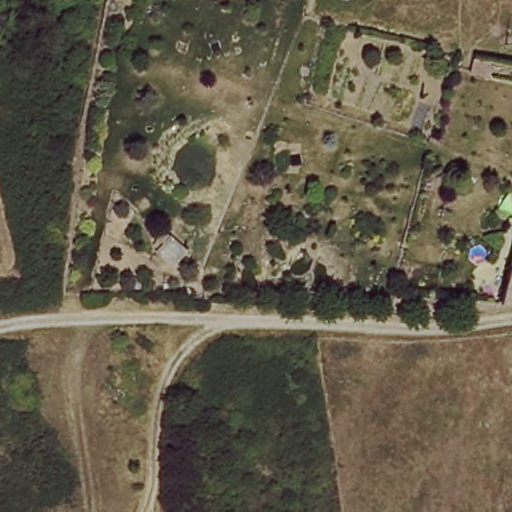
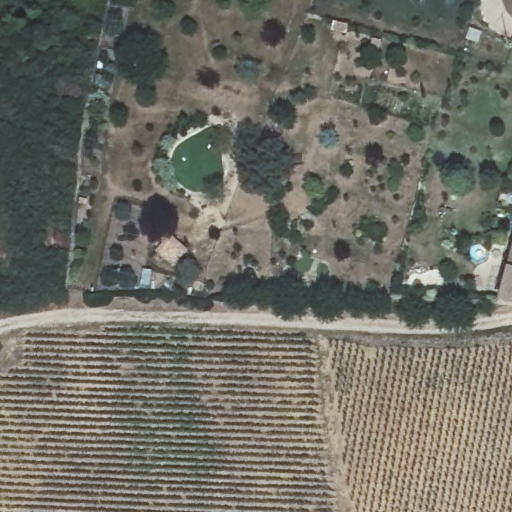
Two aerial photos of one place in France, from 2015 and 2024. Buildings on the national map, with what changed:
unchanged [(509,296),(512,274),(512,296),(509,296)]

